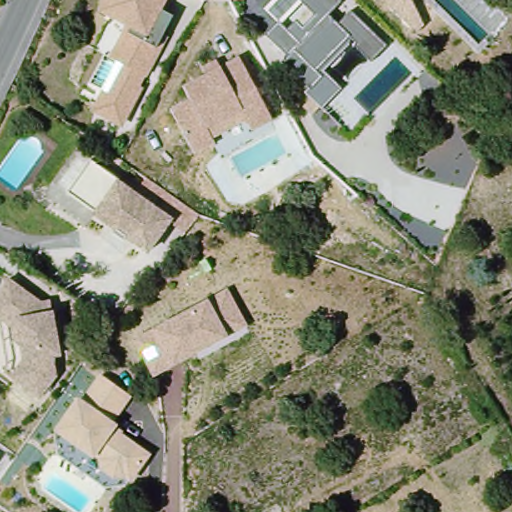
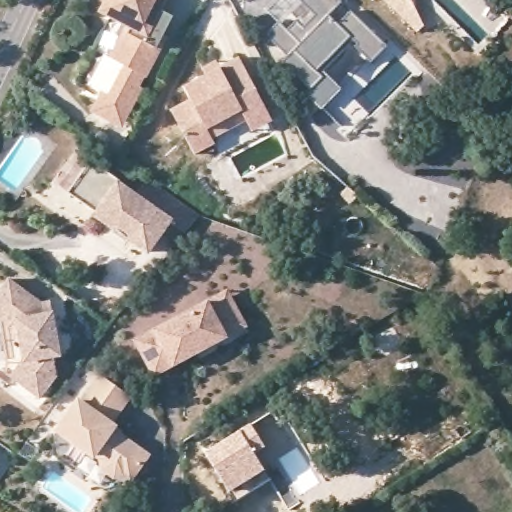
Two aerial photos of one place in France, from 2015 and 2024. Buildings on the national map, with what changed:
unchanged [(161,15),(172,19),(119,129),(90,118),(100,93),(91,89),(122,31),(98,15),(105,0),(167,0),(161,15)]
unchanged [(272,0),(338,0),(341,3),(329,15),(338,23),(350,12),(386,46),(369,62),(351,45),(324,72),(341,89),(321,108),(278,68),(288,57),(266,33),(277,23),(264,8),(272,0)]
unchanged [(409,3),(423,28),(414,35),(380,0),(411,0),(409,3)]
unchanged [(270,123),(251,137),(242,125),(193,158),(166,112),(186,98),(181,91),(235,59),(270,123)]
unchanged [(169,219),(146,255),(66,198),(88,163),(169,219)]
unchanged [(61,374),(38,398),(8,376),(16,365),(10,324),(0,320),(0,292),(9,281),(53,310),(61,374)]
unchanged [(133,339),(153,328),(208,299),(228,290),(247,326),(228,337),(172,367),(151,378),(133,339)]
unchanged [(131,400),(113,429),(150,458),(125,490),(52,436),(97,378),(131,400)]
new [(236,500),(230,493),(202,452),(250,423),(264,446),(254,452),(265,471),(270,479),(236,500)]

